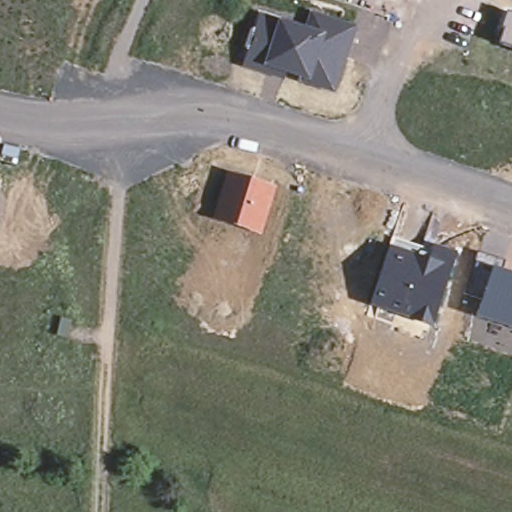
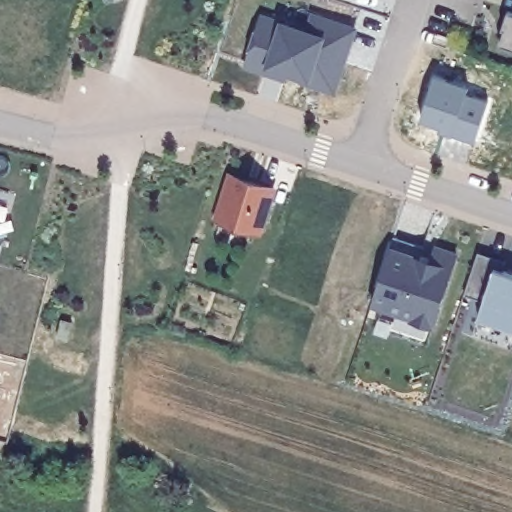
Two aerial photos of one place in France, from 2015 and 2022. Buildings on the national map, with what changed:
unchanged [(299,81),(302,77),(286,72),(283,78),(243,65),(261,12),(280,19),(308,26),(311,10),(358,25),(336,92),(299,81)]
unchanged [(502,43),(506,29),(503,27),(508,11),(512,13),(512,46),(502,43)]
new [(466,91),(465,95),(488,102),(473,148),(438,135),(439,133),(418,125),(432,79),(466,91)]
unchanged [(216,218),(231,173),(276,186),(261,234),(216,218)]
unchanged [(371,304),(391,245),(392,237),(433,250),(434,244),(458,252),(433,327),(371,304)]
unchanged [(476,316),(483,298),(464,295),(479,252),(506,261),(503,271),(512,274),(512,328),(476,316)]

